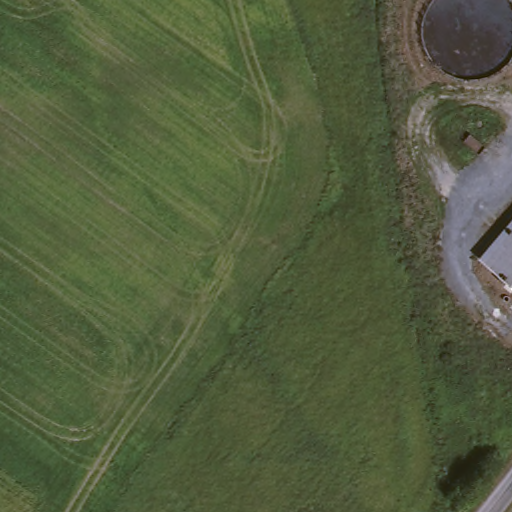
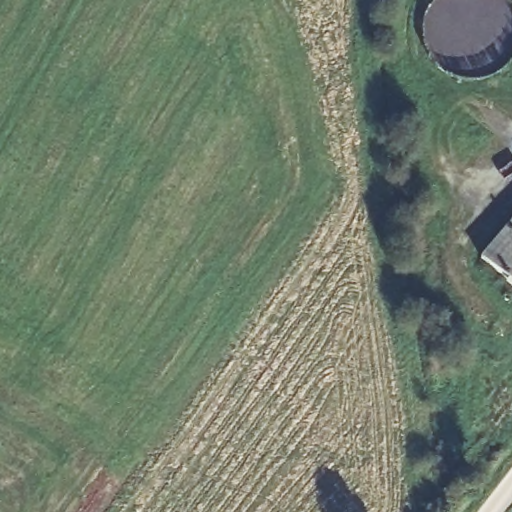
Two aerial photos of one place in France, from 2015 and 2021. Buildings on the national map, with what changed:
unchanged [(512,225),(512,280),(485,258),(512,225)]

